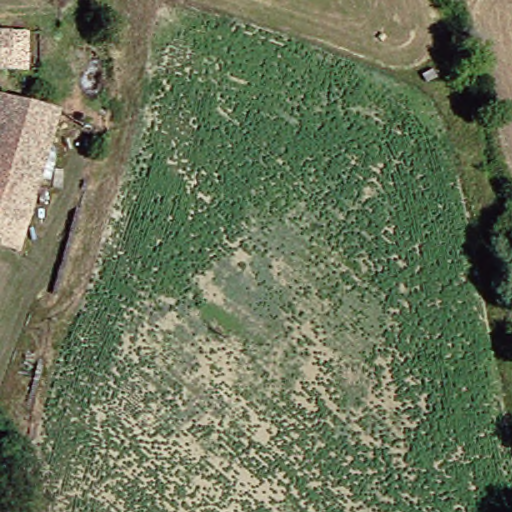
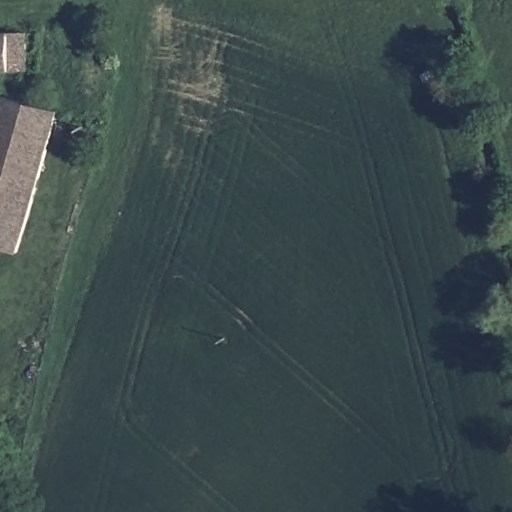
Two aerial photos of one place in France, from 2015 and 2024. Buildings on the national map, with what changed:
unchanged [(16,78),(0,77),(0,37),(17,37),(16,78)]
unchanged [(0,208),(0,105),(46,117),(20,214),(9,255),(0,253),(0,208)]

